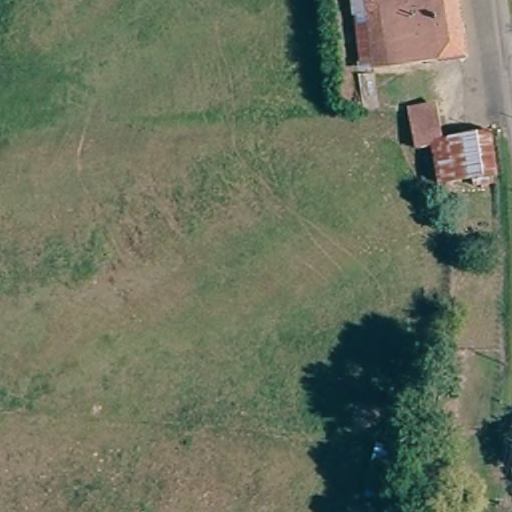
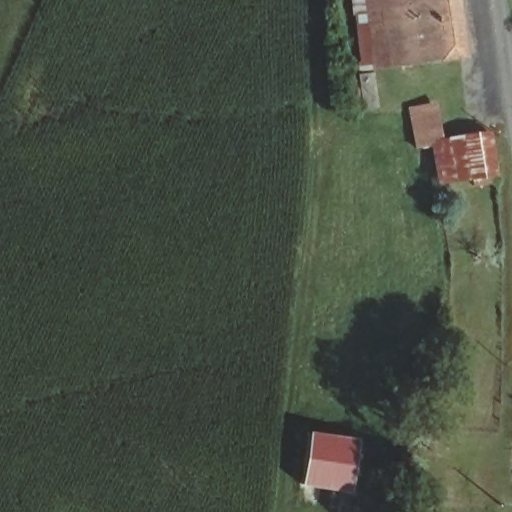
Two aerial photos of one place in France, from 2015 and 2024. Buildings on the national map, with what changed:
unchanged [(446,56),(374,68),(364,0),(438,0),(446,56)]
unchanged [(434,104),(440,141),(488,132),(496,180),(420,185),(404,110),(434,104)]
new [(308,430),(360,439),(352,494),(300,485),(308,430)]
unchanged [(390,444),(385,501),(364,500),(373,443),(390,444)]

